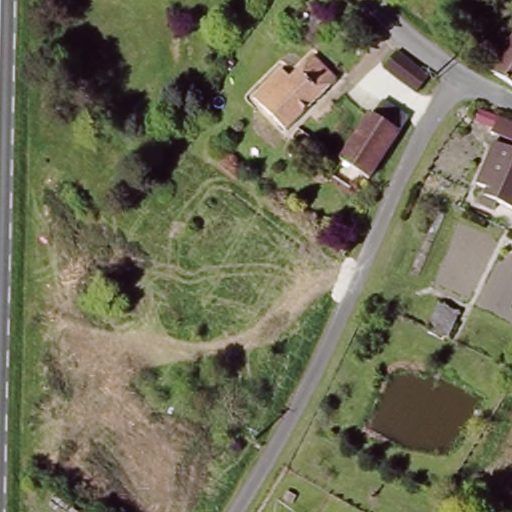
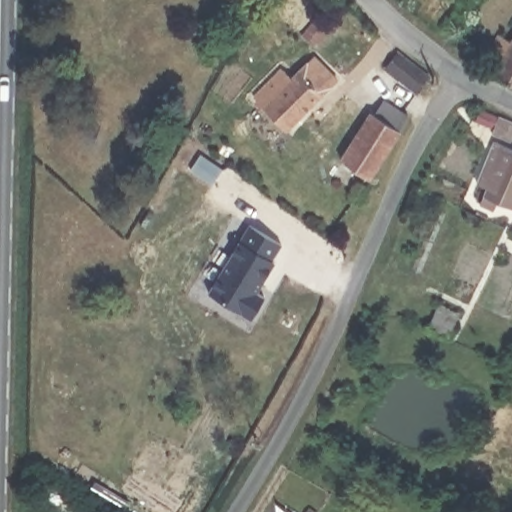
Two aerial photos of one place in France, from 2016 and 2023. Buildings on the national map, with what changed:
unchanged [(503,59),(491,51),(503,33),(512,39),(512,80),(495,72),(503,59)]
unchanged [(283,132),(264,112),(280,97),(268,87),(288,69),(297,79),(313,62),(336,86),(283,132)]
unchanged [(370,179),(345,161),(375,115),(401,133),(370,179)]
unchanged [(488,190),(480,185),(493,159),(502,142),(508,145),(510,140),(498,134),(505,122),(512,125),(512,206),(499,200),(492,214),(480,207),(488,190)]
demolished [(337,157),(330,167),(290,137),(296,129),(337,157)]
new [(265,296),(252,318),(208,293),(247,225),(280,245),(271,260),(274,261),(262,282),(256,291),(265,296)]

